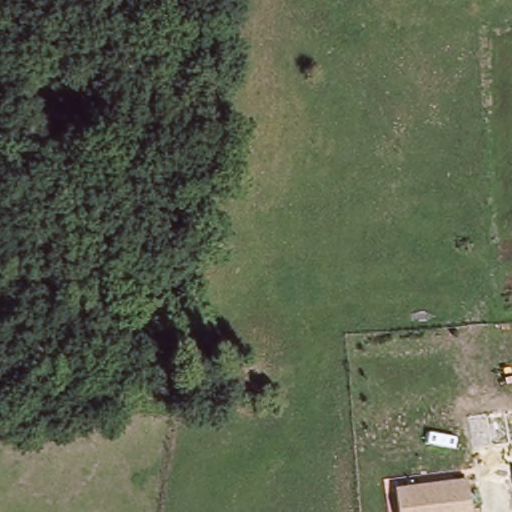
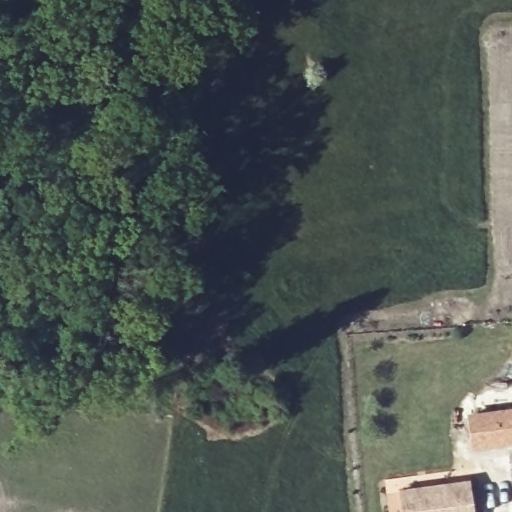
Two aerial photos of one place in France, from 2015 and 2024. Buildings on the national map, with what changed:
new [(468,414),(512,408),(512,445),(472,450),(468,414)]
unchanged [(398,488),(471,478),(476,512),(402,512),(398,488)]

